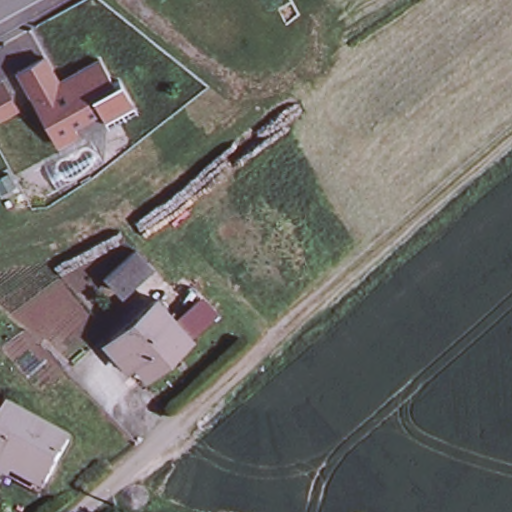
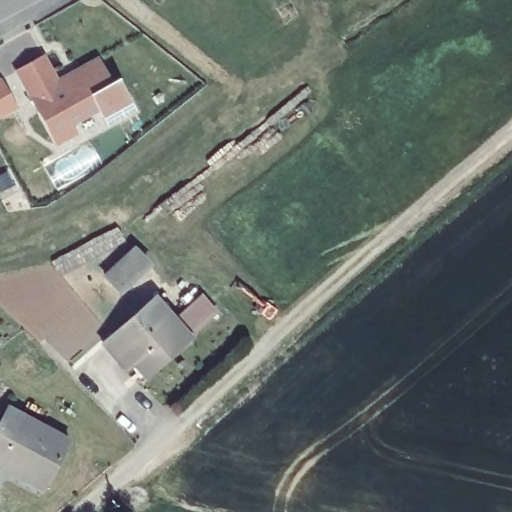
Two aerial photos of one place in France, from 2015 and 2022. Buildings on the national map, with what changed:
unchanged [(57,143),(15,71),(42,55),(55,80),(75,68),(97,56),(112,80),(117,78),(135,106),(107,123),(102,116),(77,131),(57,143)]
unchanged [(15,107),(0,116),(0,82),(15,107)]
unchanged [(5,172),(13,185),(2,192),(0,189),(0,176),(5,172)]
unchanged [(135,248),(149,262),(120,291),(106,276),(135,248)]
unchanged [(160,295),(197,333),(148,378),(114,340),(160,295)]
unchanged [(69,443),(45,490),(0,467),(0,423),(7,410),(69,443)]

